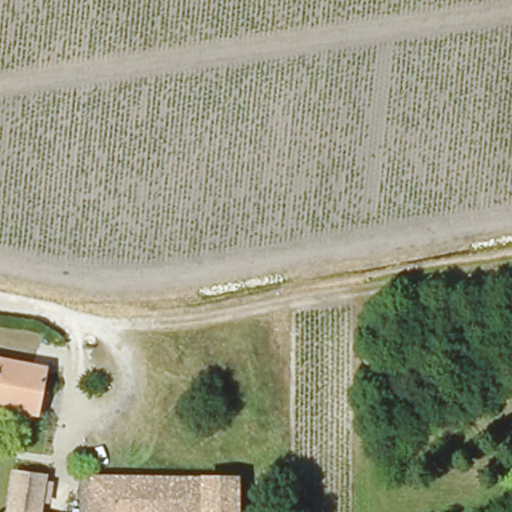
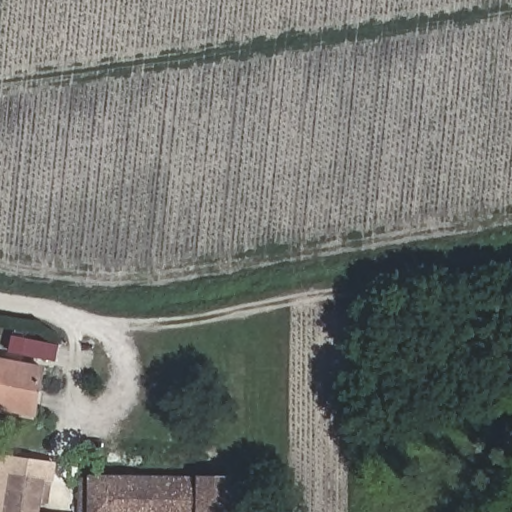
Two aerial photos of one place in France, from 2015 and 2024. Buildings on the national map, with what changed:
unchanged [(47,376),(32,425),(0,413),(0,360),(47,376)]
unchanged [(49,478),(42,512),(11,512),(19,473),(49,478)]
unchanged [(206,482),(205,478),(239,480),(238,512),(86,512),(87,475),(206,482)]

